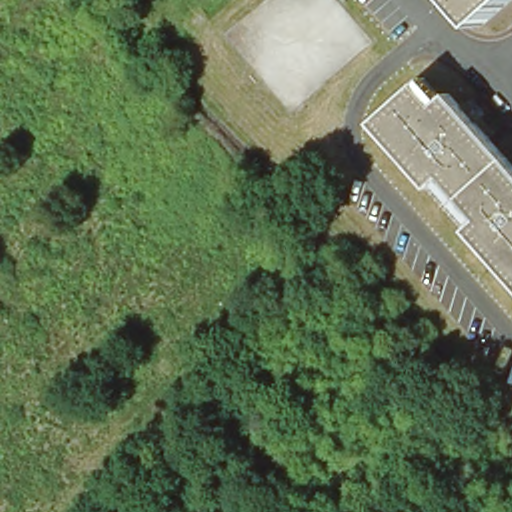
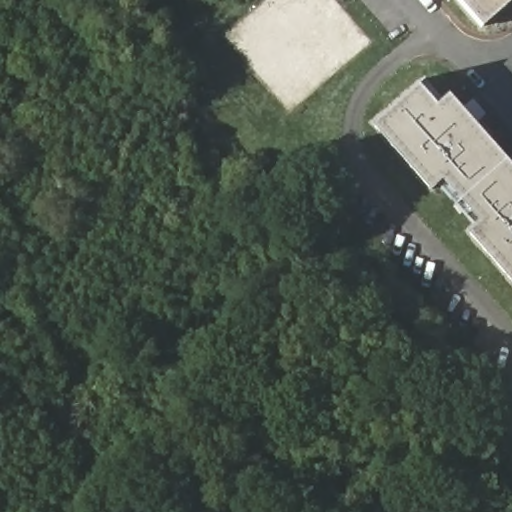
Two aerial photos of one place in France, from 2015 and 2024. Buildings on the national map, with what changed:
unchanged [(485,26),(462,0),(512,0),(512,2),(485,26)]
unchanged [(468,234),(478,224),(442,182),(430,192),(373,126),(418,86),(437,108),(449,98),(460,110),(469,101),(482,116),(473,125),(512,169),(512,284),(468,234)]

